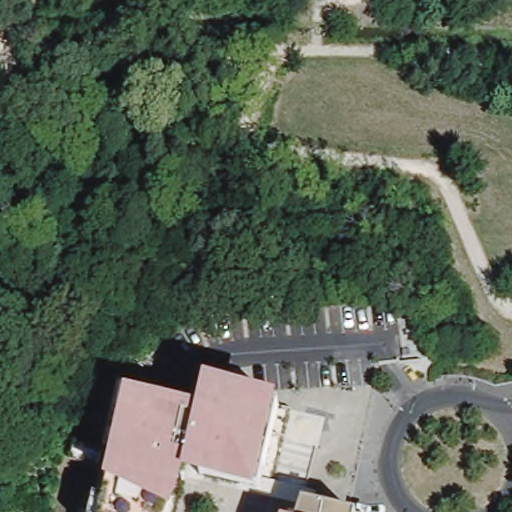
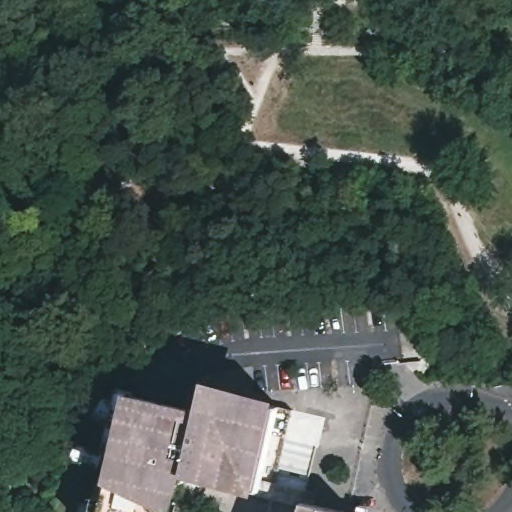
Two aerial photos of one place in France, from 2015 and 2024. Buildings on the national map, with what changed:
unchanged [(208,389),(279,407),(273,434),(261,481),(188,463),(184,478),(169,476),(165,493),(160,512),(85,512),(115,390),(202,412),(208,389)]
unchanged [(261,481),(275,485),(275,483),(316,494),(313,506),(309,505),(308,508),(184,478),(188,463),(261,481)]
unchanged [(309,505),(313,506),(338,512),(306,512),(308,508),(309,505)]

